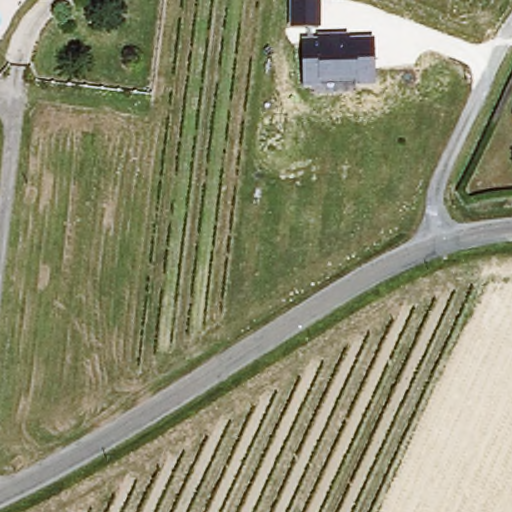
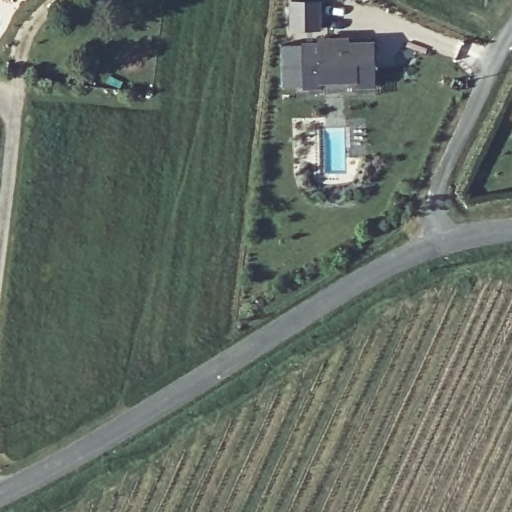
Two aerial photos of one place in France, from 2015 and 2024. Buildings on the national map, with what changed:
unchanged [(373,39),(374,83),(302,84),(301,39),(373,39)]

